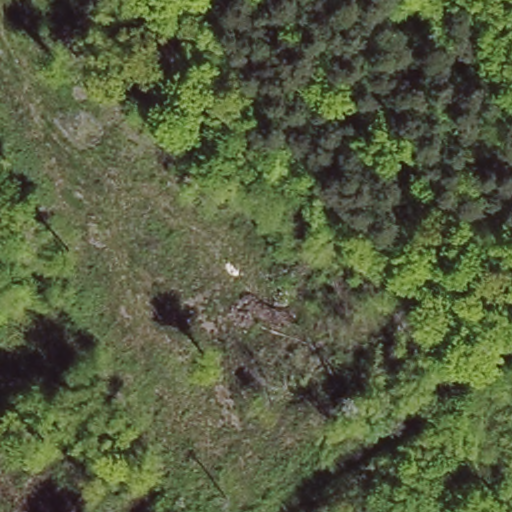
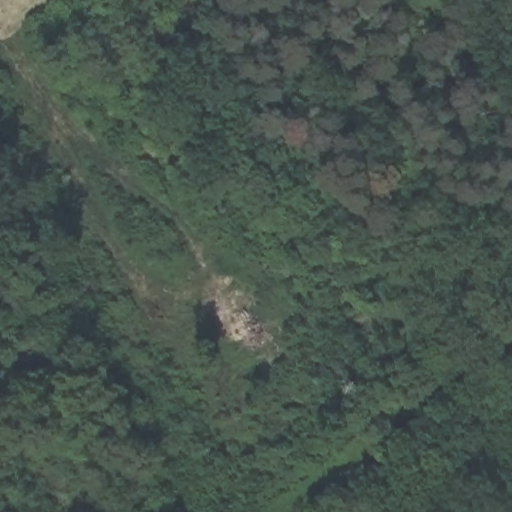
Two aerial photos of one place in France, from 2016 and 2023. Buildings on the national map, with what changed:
[]

